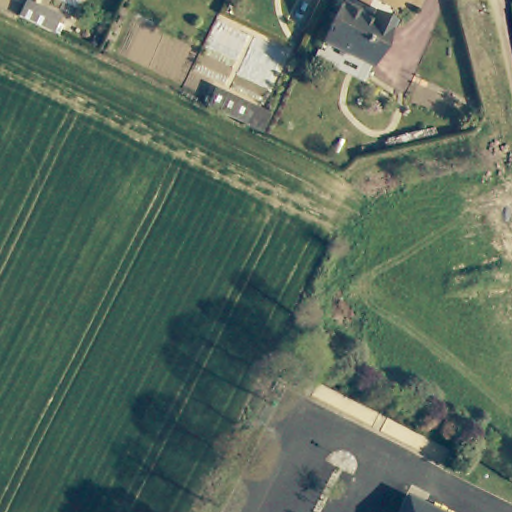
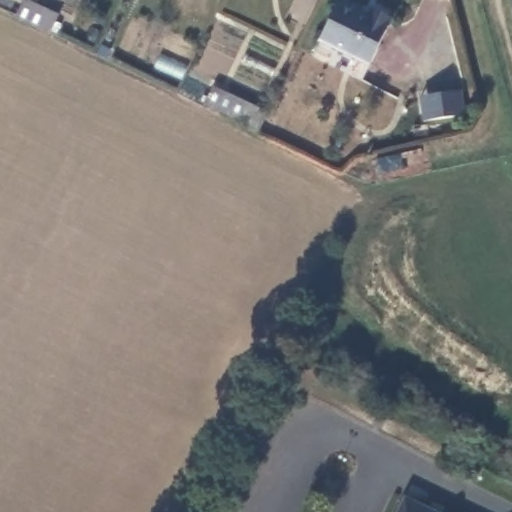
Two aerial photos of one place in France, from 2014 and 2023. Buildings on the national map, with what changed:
unchanged [(23,0),(57,17),(49,34),(15,17),(23,0)]
unchanged [(368,72),(318,49),(336,9),(367,24),(370,16),(390,26),(368,72)]
new [(422,96),(461,89),(466,110),(428,121),(422,96)]
unchanged [(248,106),(240,124),(204,106),(212,90),(248,106)]
unchanged [(304,387),(287,378),(294,363),(310,372),(304,387)]
unchanged [(401,498),(428,512),(395,512),(401,498)]

